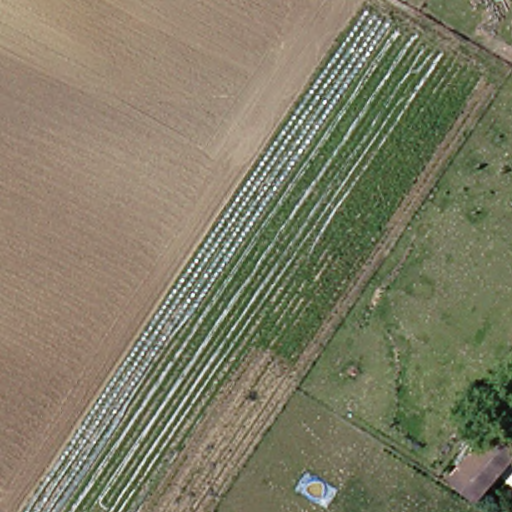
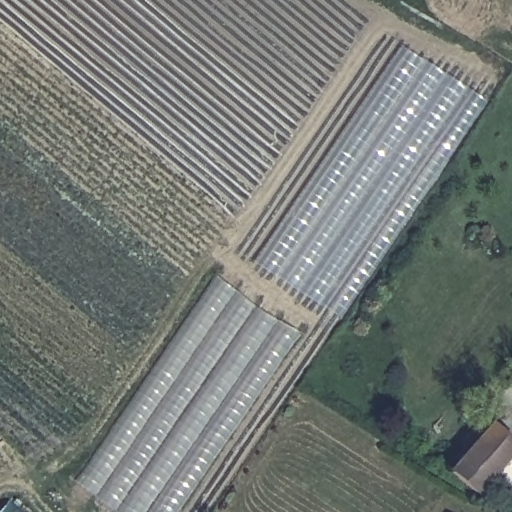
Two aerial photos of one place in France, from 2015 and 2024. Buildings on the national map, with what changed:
new [(401,46),(485,102),(340,319),(255,263),(401,46)]
new [(298,335),(177,512),(116,512),(75,484),(215,277),(298,335)]
unchanged [(485,424),(512,446),(512,449),(472,495),(446,473),(485,424)]

